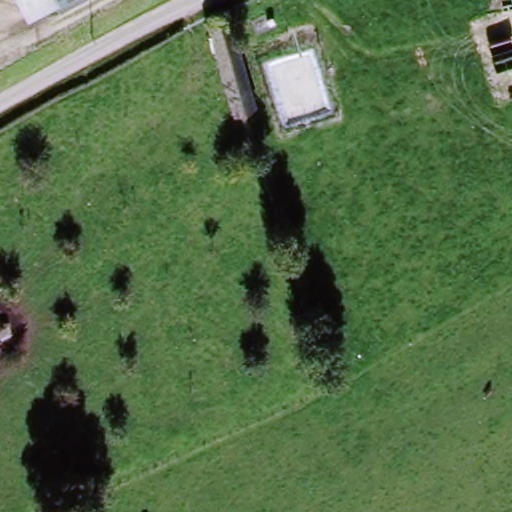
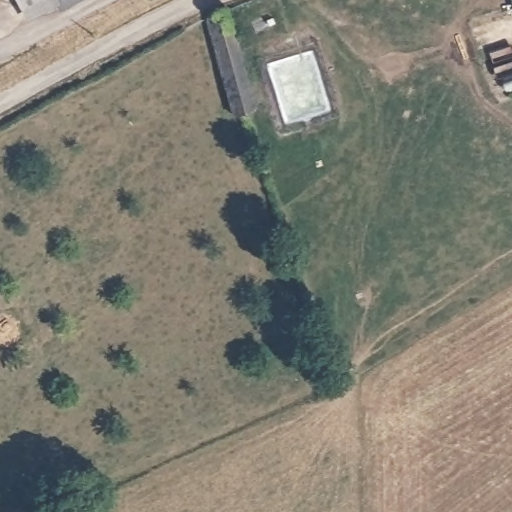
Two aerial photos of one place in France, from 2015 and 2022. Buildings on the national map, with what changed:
unchanged [(238,116),(210,25),(232,15),(260,110),(248,113),(238,116)]

